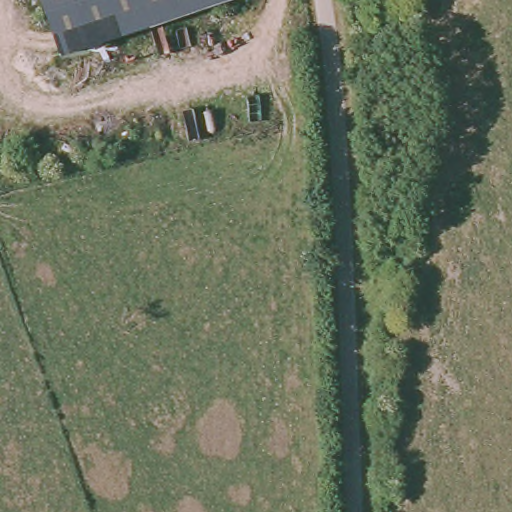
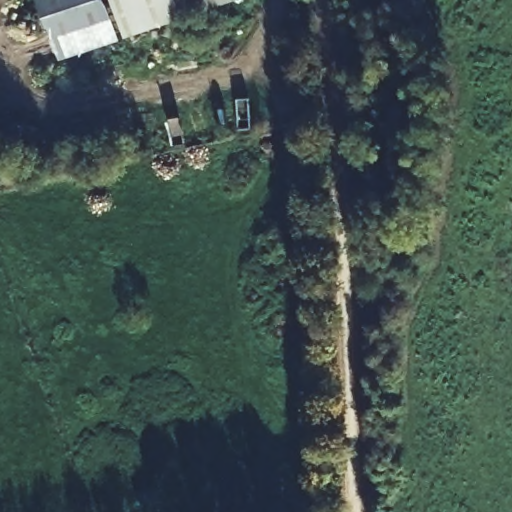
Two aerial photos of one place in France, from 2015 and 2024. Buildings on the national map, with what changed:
unchanged [(62,59),(42,0),(235,0),(62,59)]

